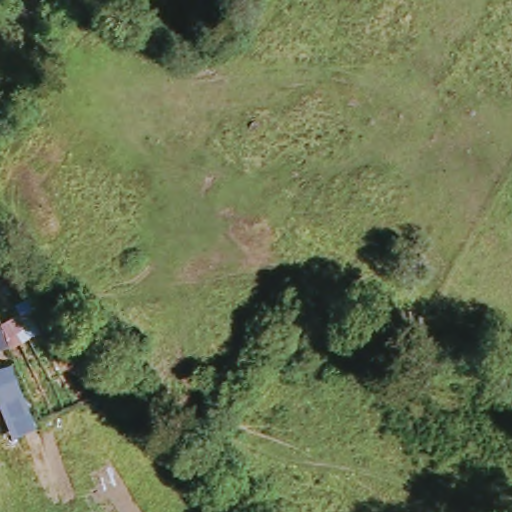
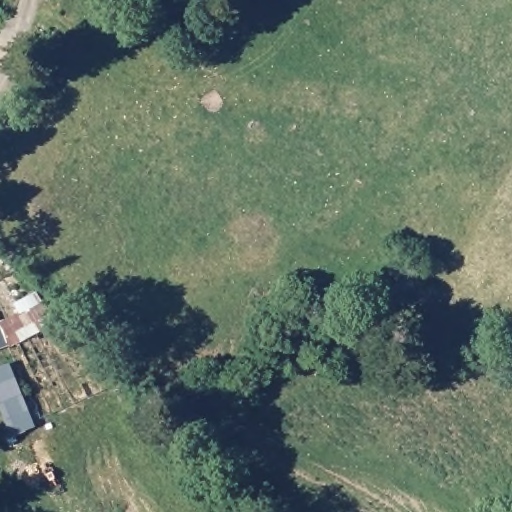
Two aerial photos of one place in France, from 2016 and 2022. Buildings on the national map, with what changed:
unchanged [(62,328),(17,350),(0,352),(0,326),(51,304),(62,328)]
unchanged [(0,400),(0,371),(20,366),(39,427),(12,438),(0,400)]

